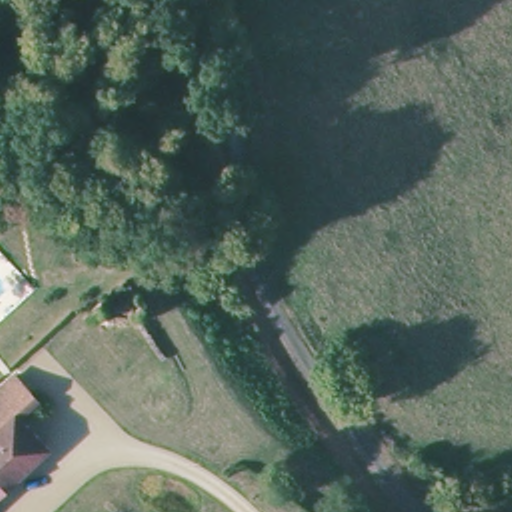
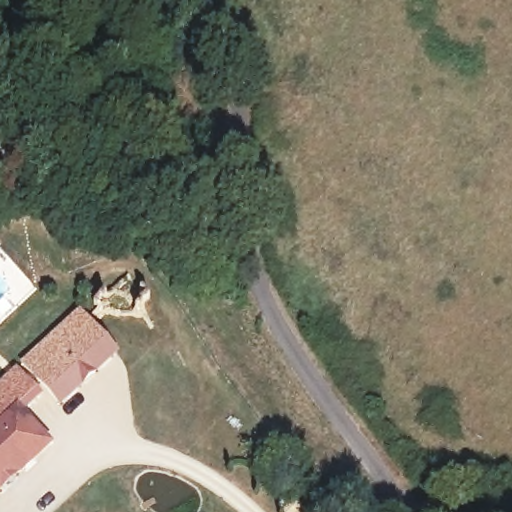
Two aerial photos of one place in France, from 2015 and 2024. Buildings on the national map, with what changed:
new [(118,353),(95,374),(96,375),(83,387),(83,386),(59,408),(19,364),(78,310),(118,353)]
unchanged [(38,396),(15,416),(46,452),(0,491),(0,388),(18,372),(38,396)]

